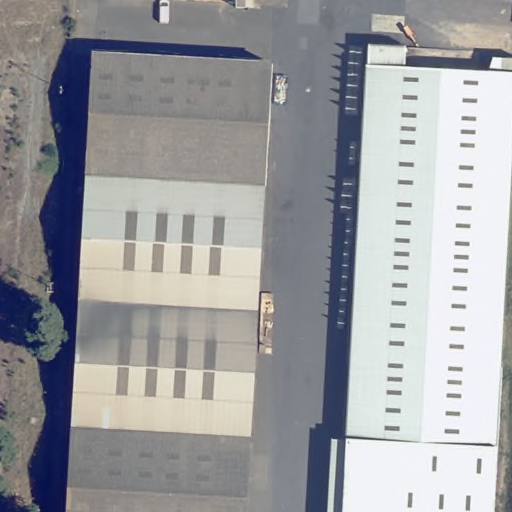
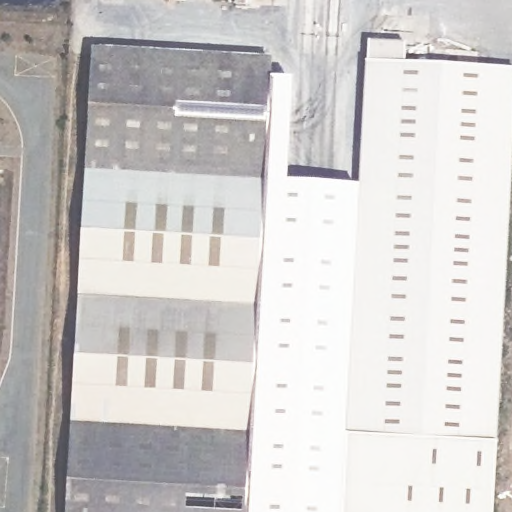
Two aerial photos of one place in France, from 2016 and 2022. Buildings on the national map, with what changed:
unchanged [(248,17),(235,17),(236,0),(249,0),(248,17)]
unchanged [(268,64),(246,491),(67,482),(92,53),(268,64)]
unchanged [(512,244),(502,446),(337,438),(358,64),(512,73),(512,244)]
new [(267,85),(292,85),(287,187),(351,191),(337,438),(333,512),(245,512),(246,491),(267,85)]
unchanged [(499,512),(333,512),(337,438),(502,446),(499,512)]
unchanged [(245,512),(66,512),(67,482),(246,491),(245,512)]

